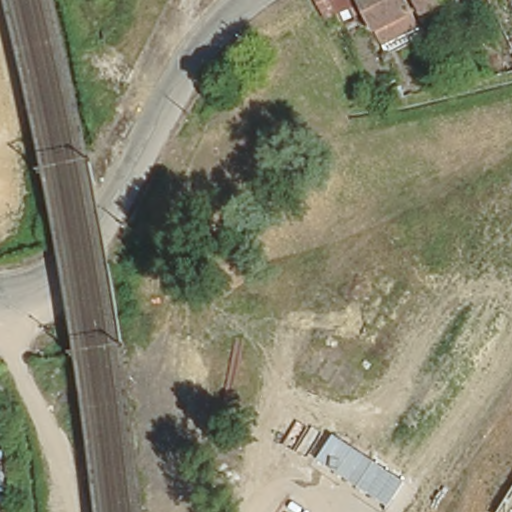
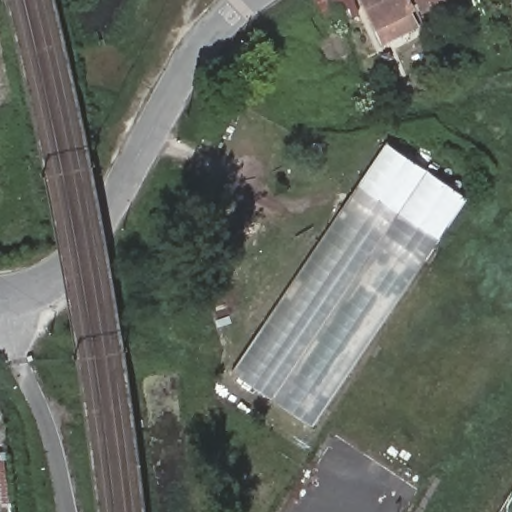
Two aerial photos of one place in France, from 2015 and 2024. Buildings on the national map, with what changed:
unchanged [(357,9),(341,16),(337,9),(323,15),(317,0),(353,0),(357,9)]
unchanged [(422,33),(387,50),(381,36),(378,37),(360,0),(406,0),(422,33)]
unchanged [(421,10),(416,0),(442,0),(421,10)]
unchanged [(385,47),(388,55),(382,57),(378,50),(385,47)]
new [(260,391),(252,385),(242,378),(232,371),(386,142),(396,149),(407,156),(415,161),(427,170),(436,175),(447,183),(455,188),(467,196),(312,426),(300,417),(292,412),(281,405),(272,399),(260,391)]
unchanged [(4,456),(10,497),(0,499),(0,457),(4,456)]

